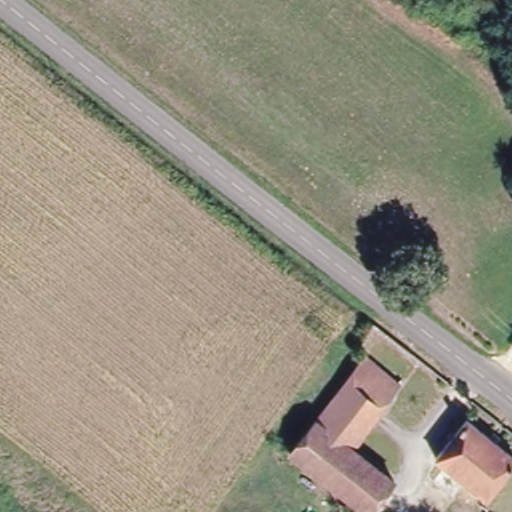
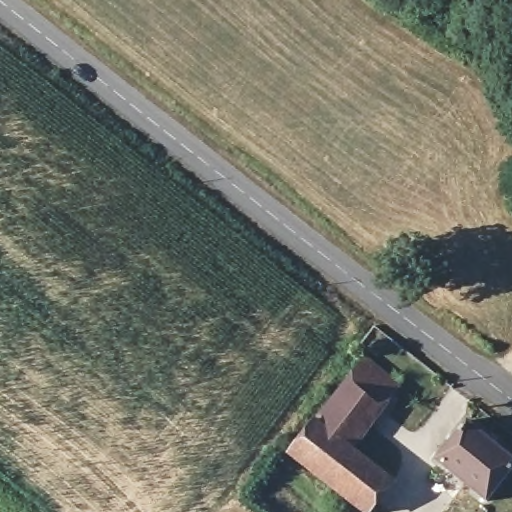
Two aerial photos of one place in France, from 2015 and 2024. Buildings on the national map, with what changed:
unchanged [(354,447),(394,480),(369,512),(366,512),(287,452),(360,354),(400,385),(354,447)]
unchanged [(470,421),(512,455),(512,472),(488,501),(437,460),(470,421)]

